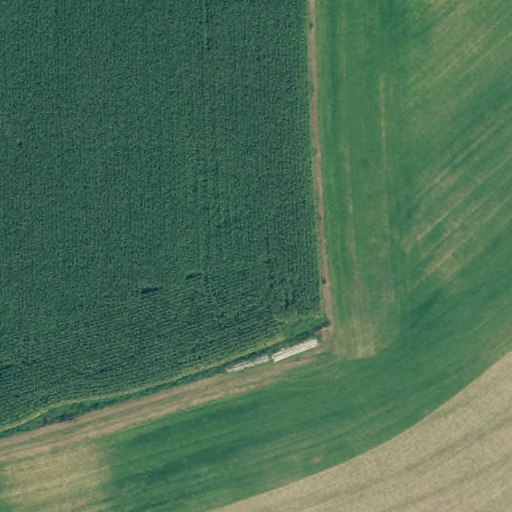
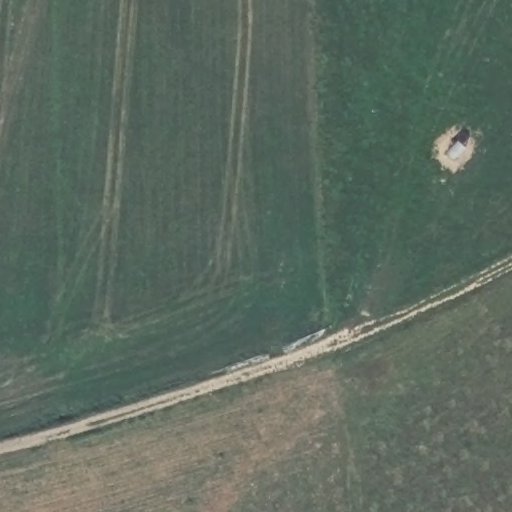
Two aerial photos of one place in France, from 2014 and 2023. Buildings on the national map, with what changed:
[]

